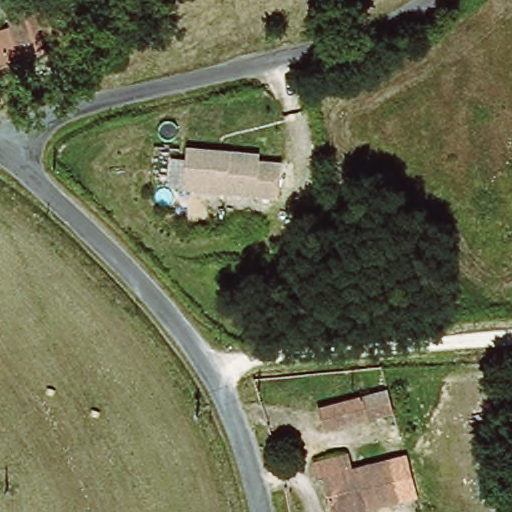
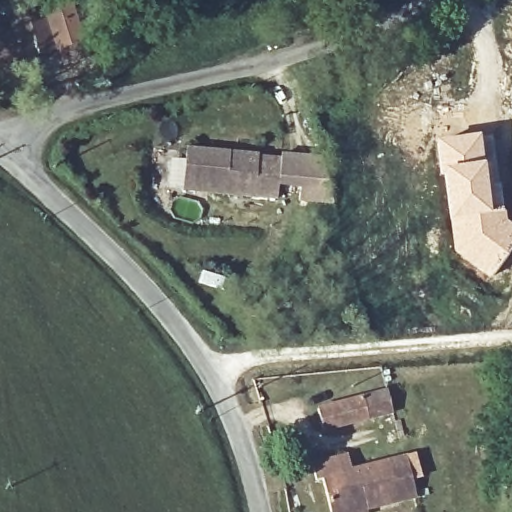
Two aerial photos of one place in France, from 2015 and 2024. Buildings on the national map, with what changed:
unchanged [(35,4),(47,0),(55,0),(63,34),(44,39),(48,54),(0,66),(0,31),(40,21),(35,4)]
new [(480,134),(488,186),(499,185),(503,209),(506,220),(512,224),(512,249),(491,277),(453,250),(444,190),(435,140),(480,134)]
unchanged [(261,153),(261,160),(283,161),(281,199),(184,191),(185,184),(165,183),(167,160),(186,160),(187,147),(261,153)]
unchanged [(388,387),(394,416),(327,432),(320,405),(388,387)]
unchanged [(327,511),(322,482),(314,482),(311,463),(349,455),(352,474),(387,468),(396,503),(357,511),(358,512),(328,512),(327,511)]

